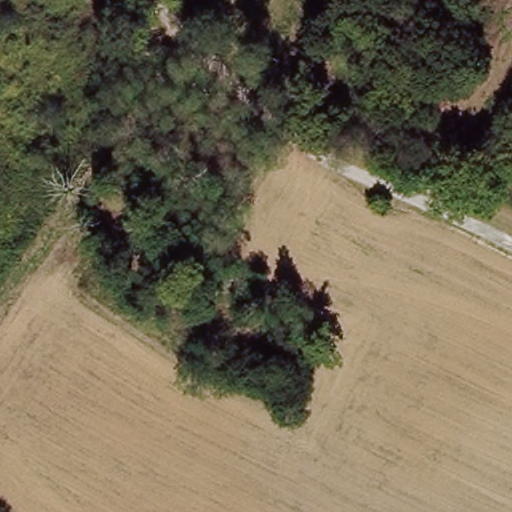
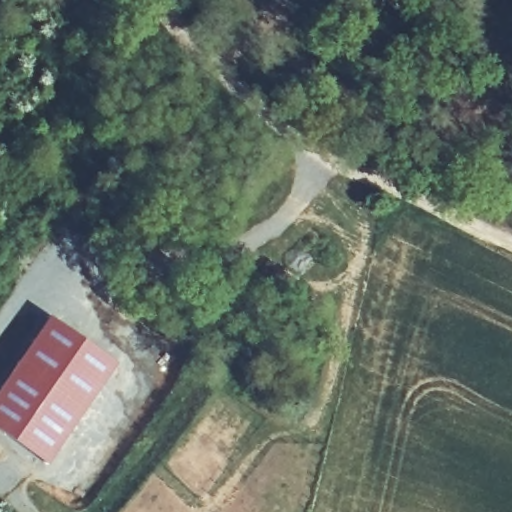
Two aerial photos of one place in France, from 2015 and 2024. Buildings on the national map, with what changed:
new [(5,375),(49,315),(117,360),(97,394),(47,463),(0,431),(0,382),(5,375)]
new [(5,339),(2,344),(10,351),(8,354),(10,355),(7,358),(10,360),(2,373),(5,375),(0,382),(0,336),(5,339)]

